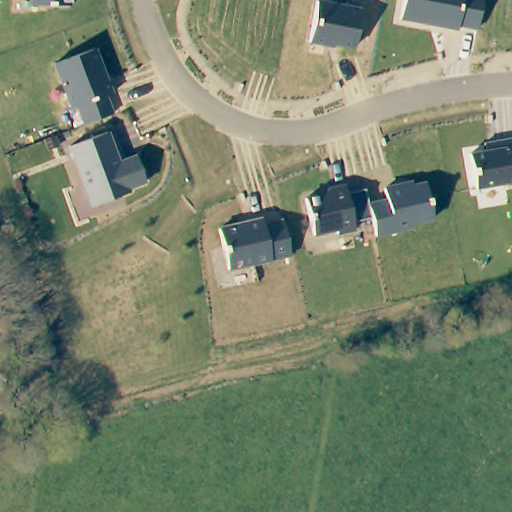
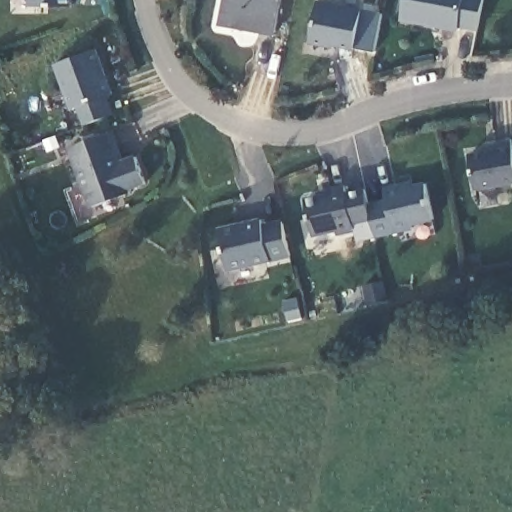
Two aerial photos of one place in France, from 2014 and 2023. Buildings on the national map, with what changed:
unchanged [(32,8),(32,0),(73,0),(73,6),(32,8)]
new [(282,0),(276,35),(216,24),(222,0),(282,0)]
unchanged [(460,26),(458,31),(400,21),(405,0),(483,0),(477,30),(460,26)]
unchanged [(363,9),(355,49),(335,45),(333,49),(310,45),(317,1),(363,9)]
unchanged [(96,49),(114,94),(105,96),(112,116),(85,125),(77,109),(72,111),(55,64),(96,49)]
unchanged [(110,133),(120,161),(136,156),(145,184),(130,190),(130,194),(92,206),(69,148),(110,133)]
unchanged [(485,143),(512,138),(512,183),(477,190),(470,155),(486,151),(485,143)]
unchanged [(326,196),(325,189),(345,185),(348,194),(365,190),(368,202),(385,197),(383,186),(411,179),(413,184),(426,182),(433,219),(410,225),(411,229),(377,235),(374,218),(354,222),(355,232),(337,236),(336,232),(313,237),(305,201),(326,196)]
unchanged [(262,217),(263,224),(285,219),(293,256),(230,271),(220,227),(262,217)]

